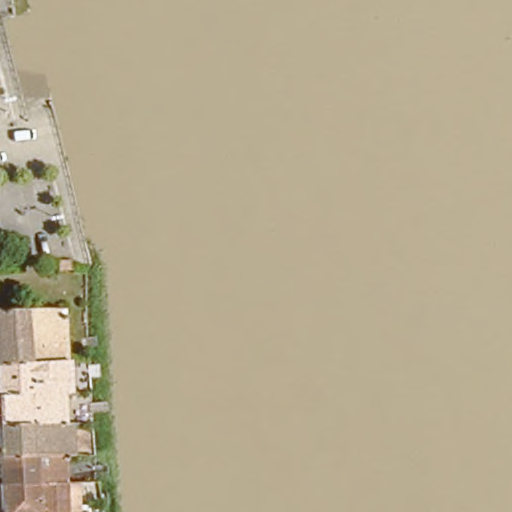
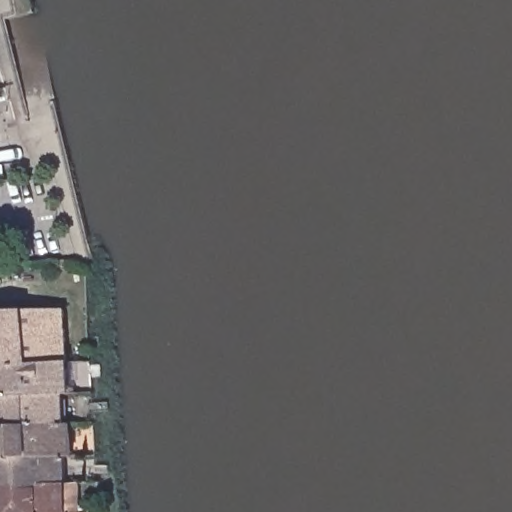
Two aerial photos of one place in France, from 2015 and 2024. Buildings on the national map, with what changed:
unchanged [(67,315),(62,315),(65,361),(0,366),(0,308),(66,304),(67,315)]
unchanged [(0,459),(0,366),(65,361),(67,393),(75,392),(77,422),(69,423),(70,455),(65,455),(0,459)]
unchanged [(67,482),(50,482),(0,485),(0,459),(65,455),(67,482)]
unchanged [(52,512),(0,512),(0,485),(50,482),(52,512)]

